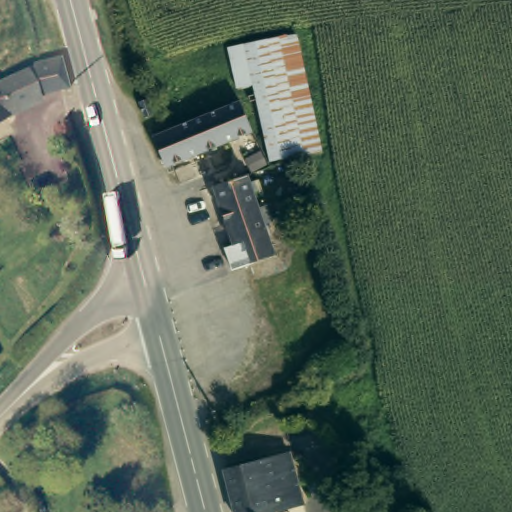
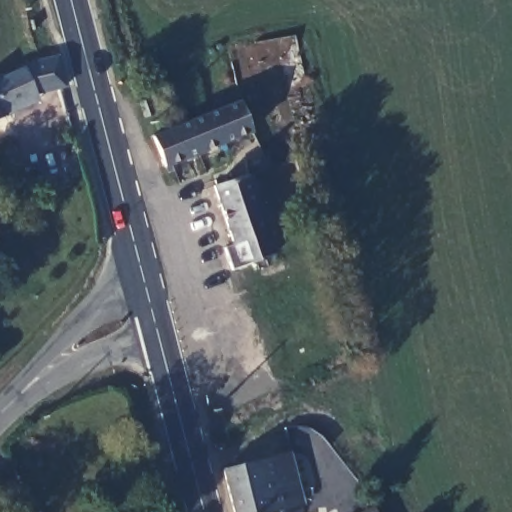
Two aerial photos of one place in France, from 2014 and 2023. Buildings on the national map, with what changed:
unchanged [(34,69),(57,61),(62,89),(0,111),(0,84),(26,75),(25,71),(34,69)]
unchanged [(179,124),(236,100),(251,130),(192,155),(170,165),(156,134),(179,124)]
unchanged [(237,250),(214,192),(246,179),(248,186),(252,184),(257,195),(252,196),(258,212),(267,209),(273,225),(265,228),(277,259),(236,275),(228,254),(237,250)]
unchanged [(235,512),(225,466),(288,450),(297,503),(253,512),(235,512)]
unchanged [(372,512),(348,512),(368,502),(372,512)]

